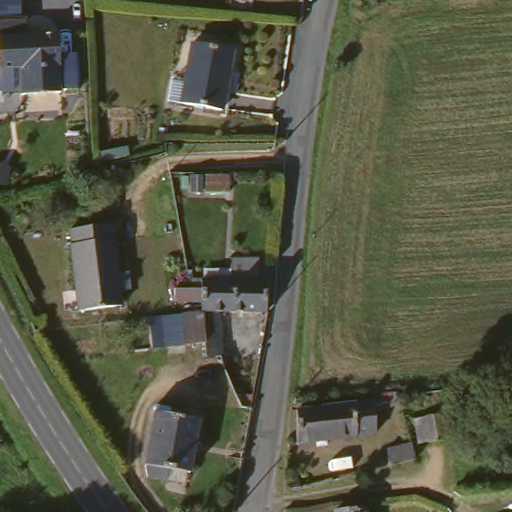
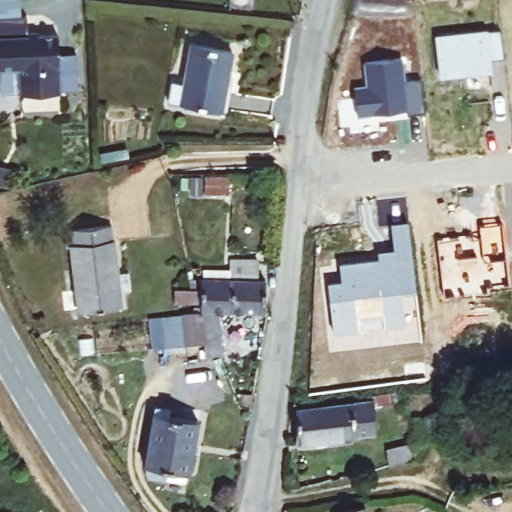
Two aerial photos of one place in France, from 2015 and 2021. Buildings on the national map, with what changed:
unchanged [(0,19),(23,21),(23,40),(48,39),(49,58),(71,57),(69,92),(16,95),(15,73),(0,73),(0,19)]
new [(498,31),(502,62),(487,63),(488,72),(439,78),(435,38),(484,33),(498,31)]
unchanged [(172,80),(186,83),(193,50),(232,57),(220,113),(182,105),(167,102),(172,80)]
new [(369,87),(366,64),(399,60),(402,83),(417,82),(421,114),(404,116),(404,111),(357,117),(356,89),(369,87)]
unchanged [(213,180),(212,190),(192,186),(194,178),(213,180)]
unchanged [(79,313),(69,230),(111,224),(123,308),(79,313)]
new [(337,286),(336,268),(383,262),(384,272),(394,271),(392,261),(397,260),(393,227),(408,225),(416,293),(405,294),(408,326),(331,335),(325,287),(337,286)]
new [(470,237),(470,241),(480,240),(479,232),(501,230),(508,287),(486,290),(487,294),(444,299),(437,241),(470,237)]
unchanged [(182,350),(169,312),(175,312),(176,291),(178,276),(225,278),(227,257),(257,260),(255,280),(260,280),(257,322),(210,319),(225,358),(206,362),(205,357),(201,346),(182,351),(182,350)]
unchanged [(372,402),(372,432),(301,436),(301,405),(372,402)]
unchanged [(433,449),(430,415),(446,413),(449,447),(437,449),(433,449)]
unchanged [(201,421),(195,475),(149,467),(156,415),(201,421)]
unchanged [(381,465),(382,446),(416,442),(418,455),(381,465)]
unchanged [(366,512),(346,512),(365,509),(366,512)]

